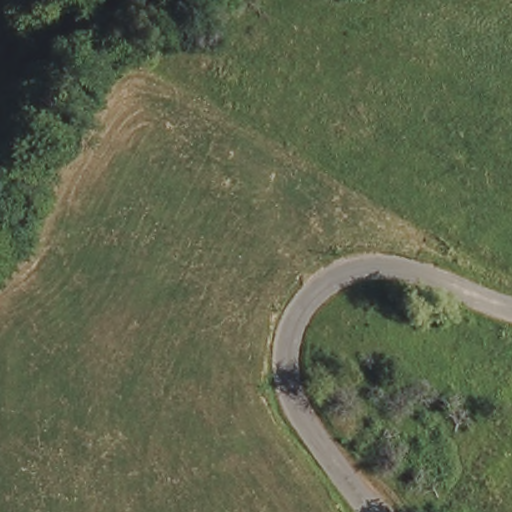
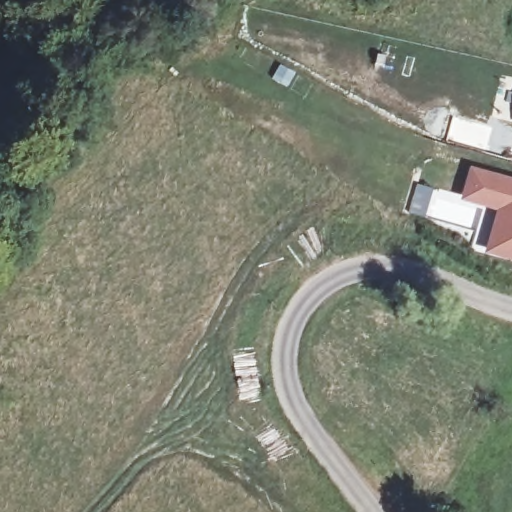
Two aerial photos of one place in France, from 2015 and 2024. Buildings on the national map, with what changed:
new [(483,252),(497,210),(462,201),(471,167),(512,178),(512,260),(483,252)]

